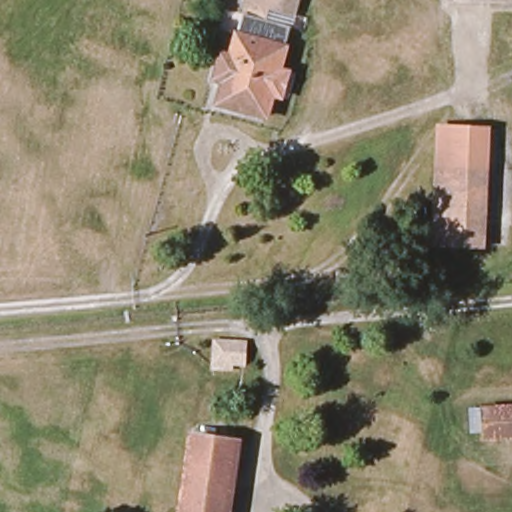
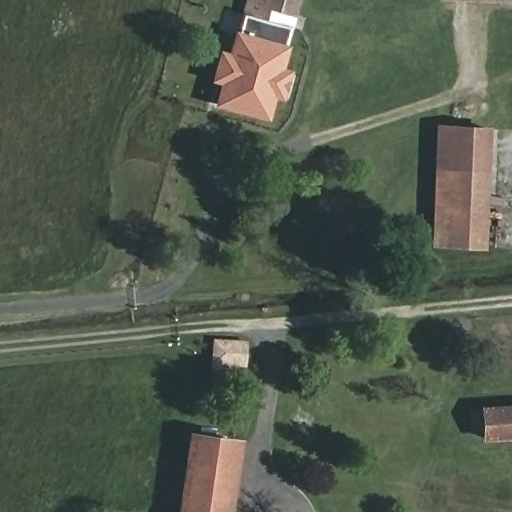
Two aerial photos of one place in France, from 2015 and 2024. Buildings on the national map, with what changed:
unchanged [(243,15),(246,0),(303,0),(298,29),(243,15)]
unchanged [(437,0),(512,0),(512,5),(437,3),(437,0)]
unchanged [(222,97),(238,29),(299,44),(293,63),(306,64),(298,87),(289,86),(283,109),(222,97)]
unchanged [(431,167),(433,125),(490,129),(489,169),(431,167)]
unchanged [(426,249),(431,167),(489,169),(483,254),(426,249)]
unchanged [(207,371),(204,344),(229,342),(252,340),(254,370),(207,371)]
unchanged [(486,431),(468,430),(467,410),(512,410),(512,444),(485,446),(486,431)]
unchanged [(201,434),(243,439),(225,512),(180,512),(201,434)]

